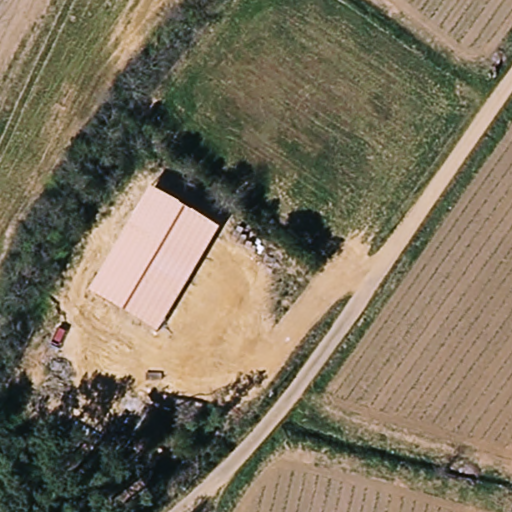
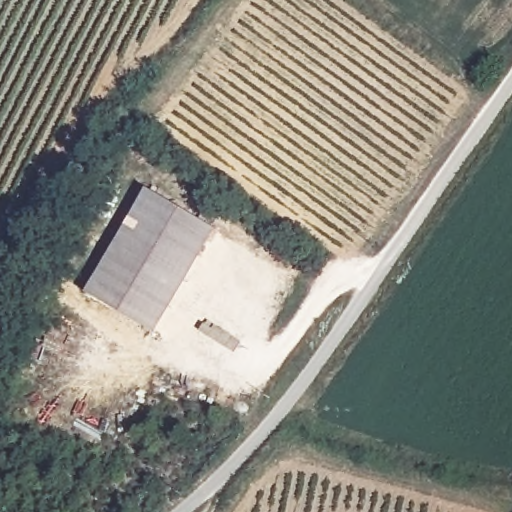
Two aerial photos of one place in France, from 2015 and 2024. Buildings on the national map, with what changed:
unchanged [(218,229),(156,333),(88,293),(148,189),(218,229)]

